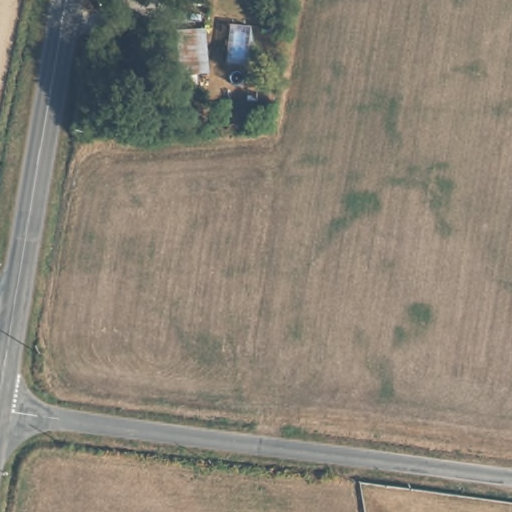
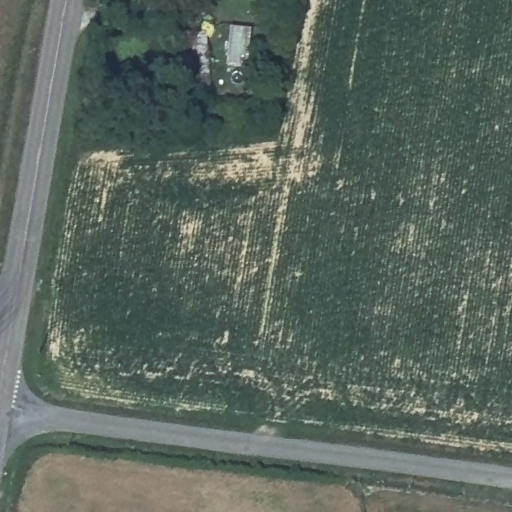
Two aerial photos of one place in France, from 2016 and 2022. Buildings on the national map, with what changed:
unchanged [(211,76),(190,77),(187,32),(207,30),(211,76)]

